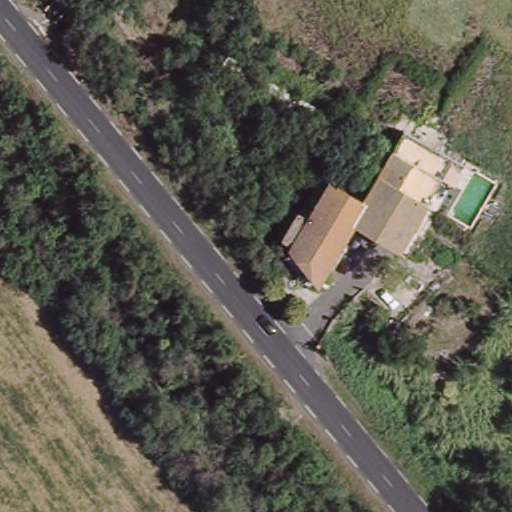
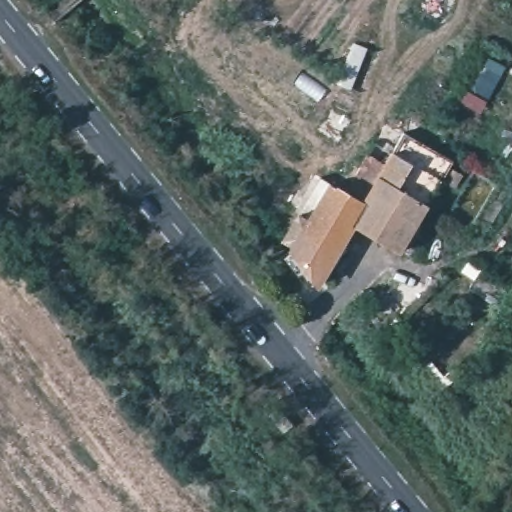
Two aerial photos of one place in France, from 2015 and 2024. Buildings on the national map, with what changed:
unchanged [(420,222),(414,233),(405,248),(360,222),(375,196),(400,145),(408,127),(459,155),(420,222)]
unchanged [(360,222),(360,224),(350,241),(326,282),(294,246),(318,210),(306,201),(324,170),(354,187),(383,136),(400,145),(375,196),(360,222)]

